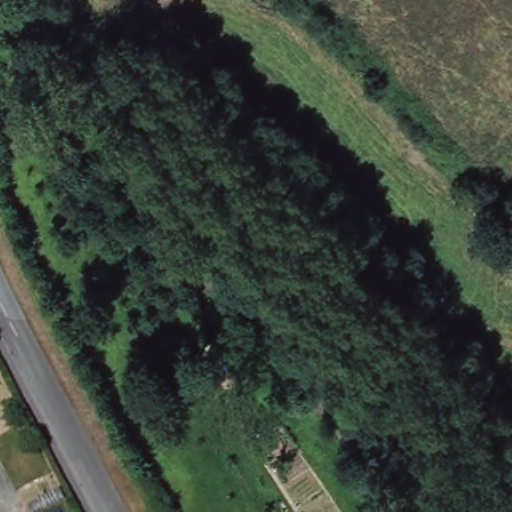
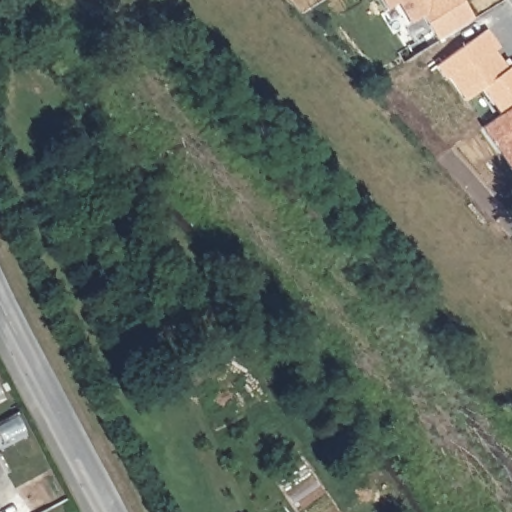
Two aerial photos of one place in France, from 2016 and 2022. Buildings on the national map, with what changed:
new [(438,39),(422,13),(410,21),(397,1),(387,7),(383,0),(465,0),(475,16),(438,39)]
new [(512,67),(512,107),(501,115),(483,89),(466,101),(449,78),(446,80),(436,66),(488,30),(501,48),(495,53),(502,64),(505,61),(510,69),(512,67)]
new [(512,168),(481,128),(512,106),(512,168)]

